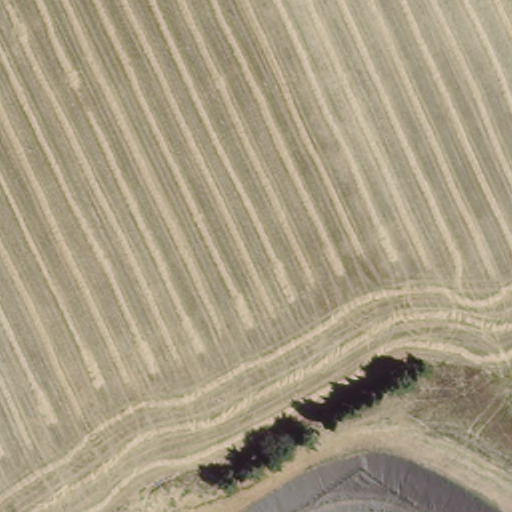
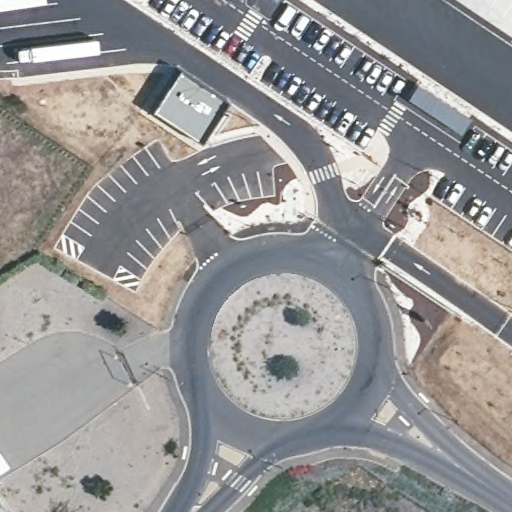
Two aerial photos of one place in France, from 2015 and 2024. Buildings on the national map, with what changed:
new [(177,69),(225,98),(196,143),(148,113),(177,69)]
new [(0,454),(7,465),(0,469),(0,454)]

